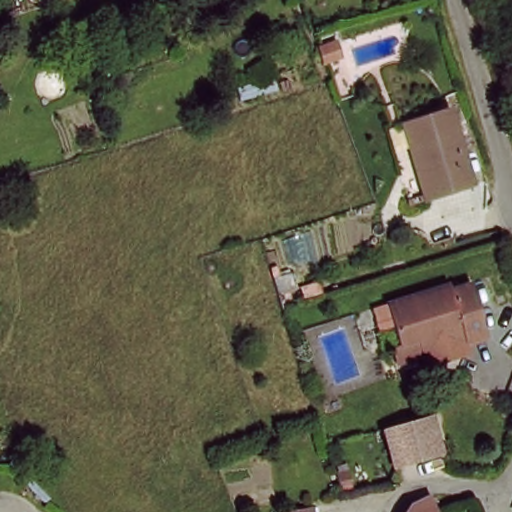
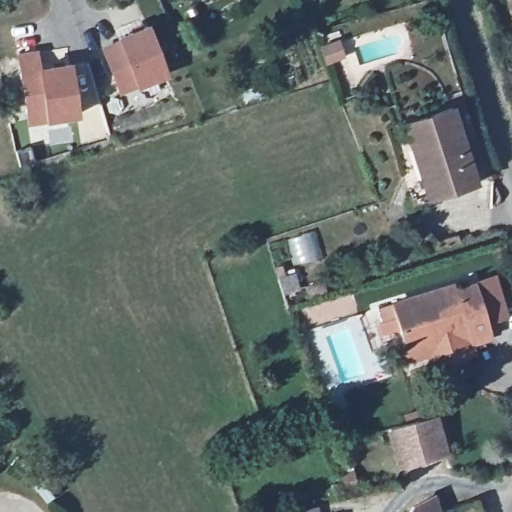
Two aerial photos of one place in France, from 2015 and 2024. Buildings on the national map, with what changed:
new [(117,36),(148,24),(170,76),(139,89),(121,95),(101,47),(117,36)]
unchanged [(336,36),(342,51),(326,57),(321,42),(336,36)]
new [(40,49),(39,66),(73,61),(83,118),(50,123),(28,126),(17,55),(40,49)]
unchanged [(405,121),(451,108),(476,186),(431,201),(424,180),(414,147),(405,121)]
unchanged [(406,373),(398,346),(408,343),(396,301),(456,281),(459,289),(478,284),(495,341),(469,349),(466,340),(437,347),(442,362),(406,373)]
unchanged [(448,457),(402,472),(388,436),(439,422),(448,457)]
unchanged [(436,506),(437,512),(419,512),(436,506)]
unchanged [(319,511),(319,512),(312,512),(319,511)]

